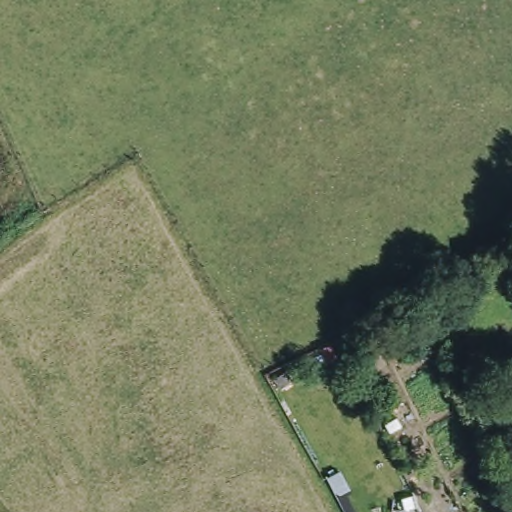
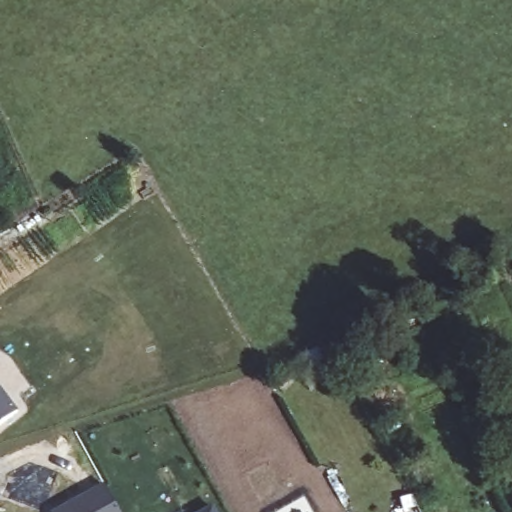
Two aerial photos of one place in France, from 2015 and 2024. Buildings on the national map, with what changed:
new [(0,425),(0,387),(18,411),(0,425)]
new [(120,512),(52,512),(104,483),(120,512)]
new [(216,512),(203,512),(213,506),(216,512)]

